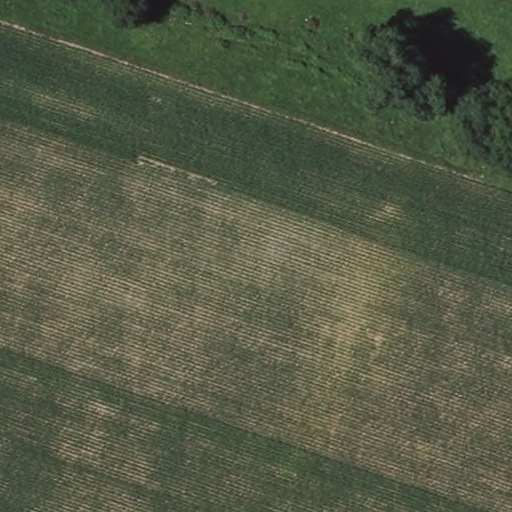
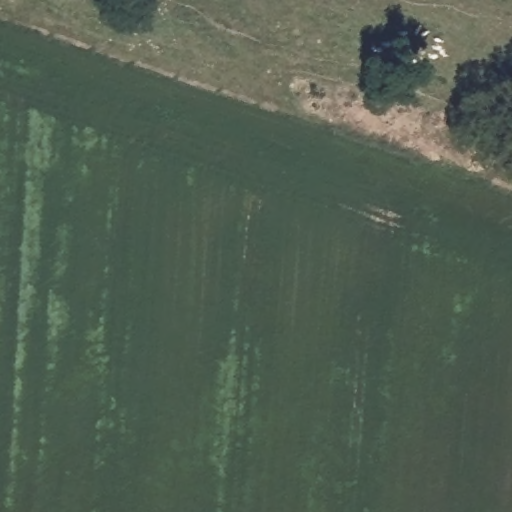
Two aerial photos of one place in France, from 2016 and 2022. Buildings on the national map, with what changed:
[]

